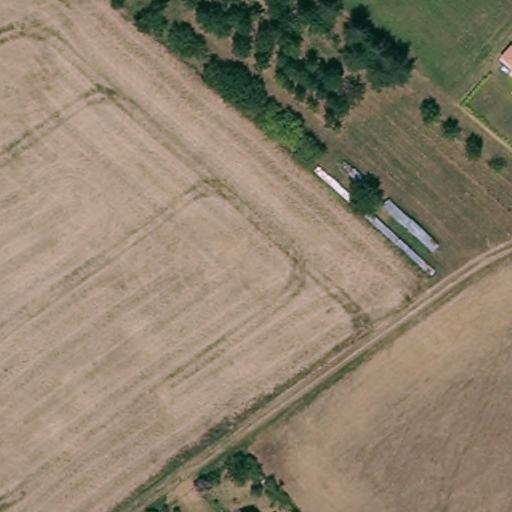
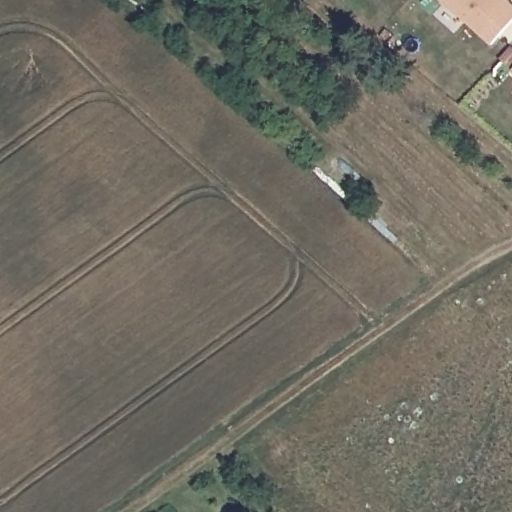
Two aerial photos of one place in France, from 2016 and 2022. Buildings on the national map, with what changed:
new [(512,2),(512,21),(491,44),(442,0),(510,0),(512,2)]
unchanged [(512,68),(512,72),(510,70),(512,68)]

